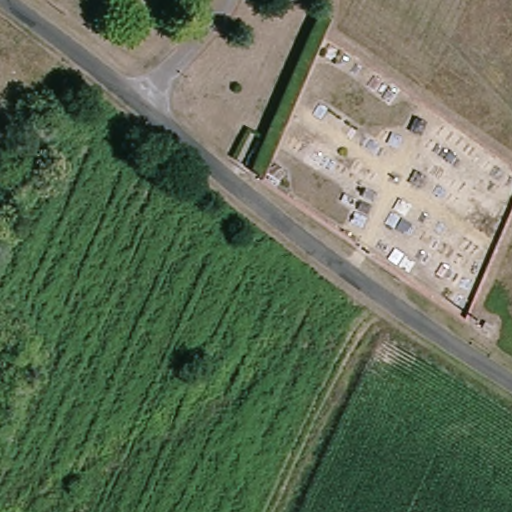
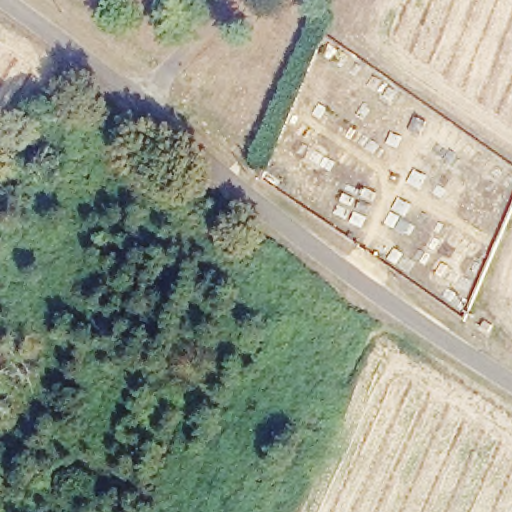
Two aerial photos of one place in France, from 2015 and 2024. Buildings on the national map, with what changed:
[]

